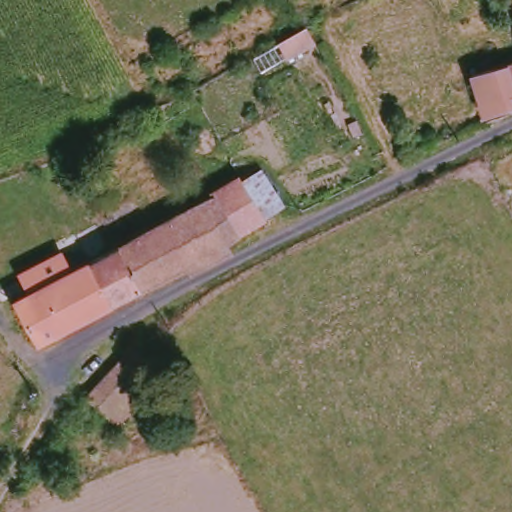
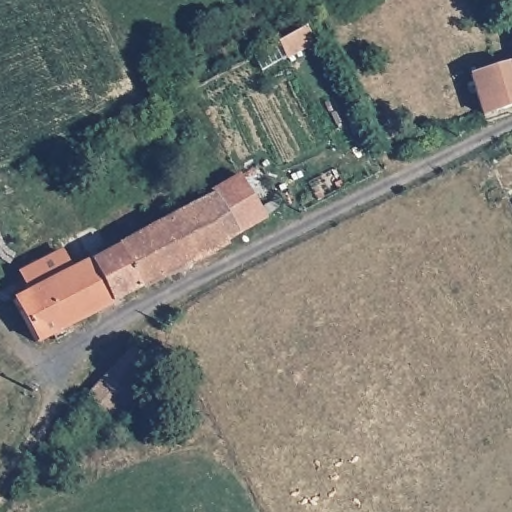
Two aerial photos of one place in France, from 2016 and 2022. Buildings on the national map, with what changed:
unchanged [(322,6),(327,26),(305,36),(297,21),(322,6)]
unchanged [(512,103),(479,114),(465,78),(512,64),(512,103)]
unchanged [(245,171),(268,213),(250,223),(226,182),(245,171)]
unchanged [(190,203),(197,199),(226,182),(250,223),(212,246),(192,206),(190,203)]
unchanged [(75,269),(192,206),(212,246),(213,249),(98,311),(75,269)]
unchanged [(18,300),(9,281),(49,262),(57,278),(75,269),(98,311),(24,350),(2,309),(18,300)]
unchanged [(127,349),(138,362),(135,364),(151,378),(110,427),(77,401),(127,349)]

